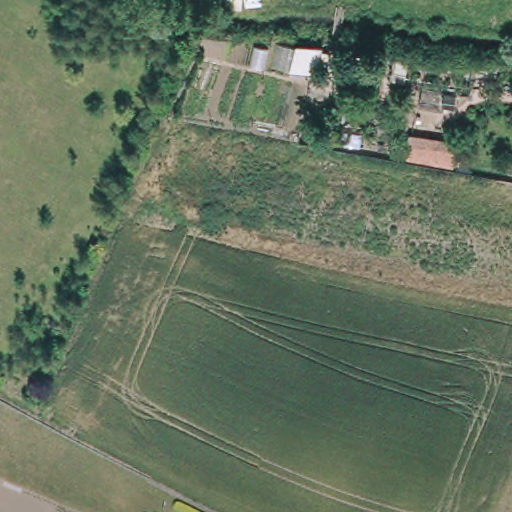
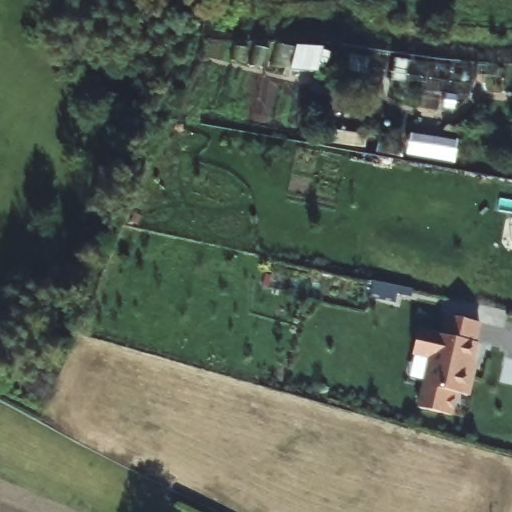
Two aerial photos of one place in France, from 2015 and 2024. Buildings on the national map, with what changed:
unchanged [(364,74),(347,69),(351,55),(368,58),(364,74)]
new [(411,133),(459,141),(454,164),(406,155),(411,133)]
new [(418,330),(442,335),(446,315),(479,323),(475,343),(477,343),(469,376),(472,377),(468,395),(456,392),(451,415),(419,408),(430,358),(413,354),(418,330)]

